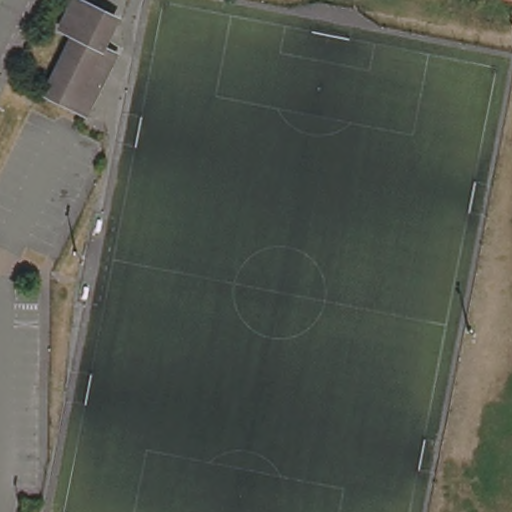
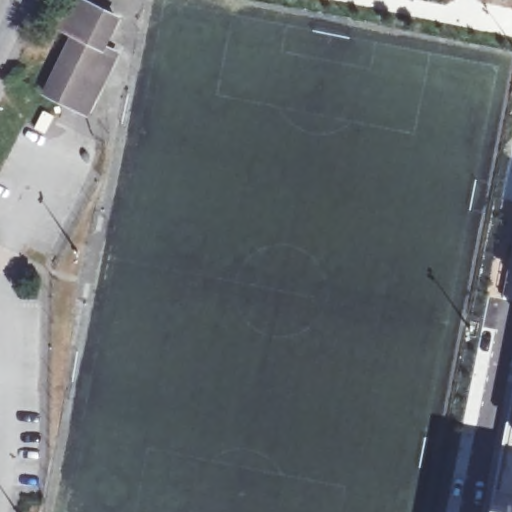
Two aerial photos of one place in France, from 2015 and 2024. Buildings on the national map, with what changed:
unchanged [(119,17),(105,49),(116,54),(90,115),(49,96),(76,36),(63,30),(77,0),(82,0),(119,17)]
new [(503,446),(509,447),(510,444),(512,444),(512,501),(491,498),(503,446)]
new [(512,501),(512,512),(488,512),(491,498),(512,501)]

